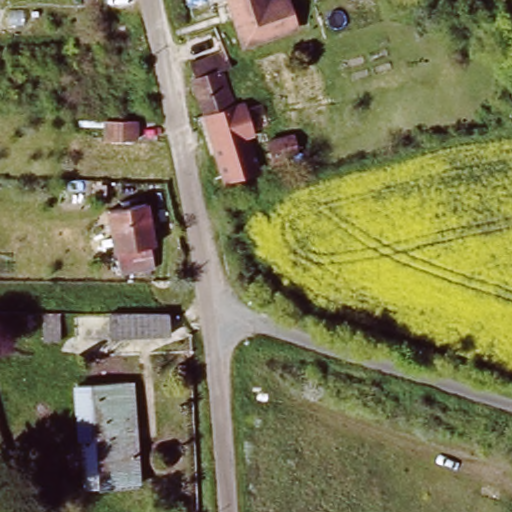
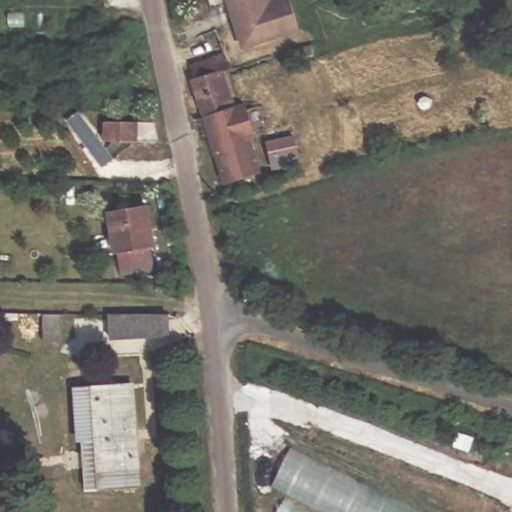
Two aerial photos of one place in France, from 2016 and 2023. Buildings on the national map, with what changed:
unchanged [(279,0),(281,0),(301,0),(310,34),(285,39),(252,45),(241,0),(279,0)]
unchanged [(203,49),(200,40),(202,40),(201,33),(209,31),(220,29),(226,27),(235,61),(237,70),(231,72),(240,110),(210,117),(199,76),(202,75),(200,61),(220,57),(217,45),(203,49)]
unchanged [(252,106),(256,120),(260,136),(256,137),(219,147),(210,117),(240,110),(252,106)]
unchanged [(146,115),(147,135),(118,135),(118,115),(146,115)]
unchanged [(300,144),(288,147),(291,158),(276,162),(269,135),(296,129),(300,144)]
unchanged [(263,165),(227,175),(219,147),(256,137),(263,165)]
unchanged [(300,160),(310,158),(310,166),(300,168),(300,160)]
unchanged [(148,203),(155,246),(150,247),(154,270),(126,275),(121,252),(116,253),(110,210),(148,203)]
unchanged [(63,311),(66,340),(51,340),(46,312),(63,311)]
unchanged [(172,311),(174,326),(122,331),(120,311),(172,311)]
unchanged [(138,380),(147,481),(111,485),(106,434),(88,435),(82,388),(138,380)]
new [(290,450),(415,512),(329,512),(273,484),(290,450)]

